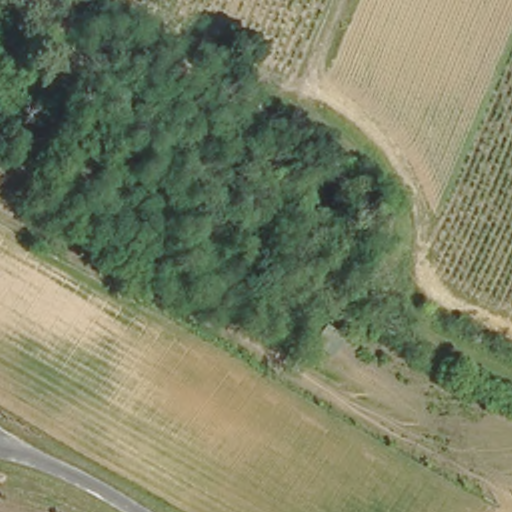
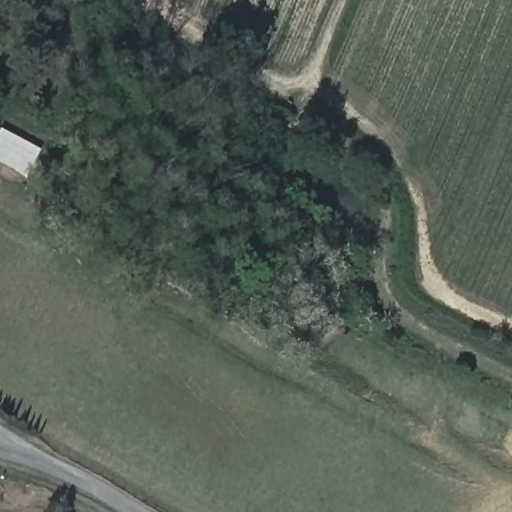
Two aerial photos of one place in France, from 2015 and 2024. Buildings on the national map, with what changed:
new [(0,131),(1,130),(41,150),(27,176),(0,162),(0,131)]

